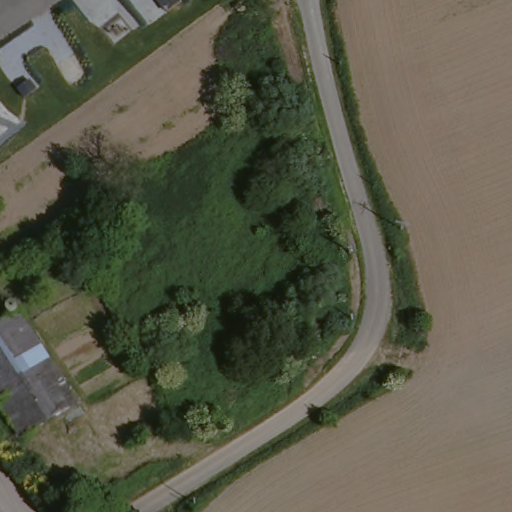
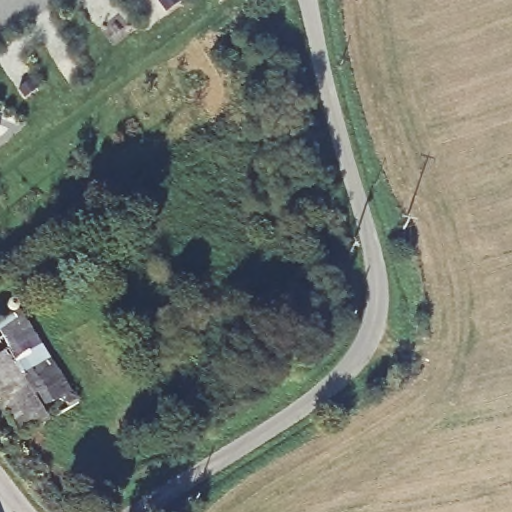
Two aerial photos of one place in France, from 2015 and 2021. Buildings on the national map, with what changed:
unchanged [(25,311),(84,403),(30,435),(0,388),(0,326),(25,311)]

